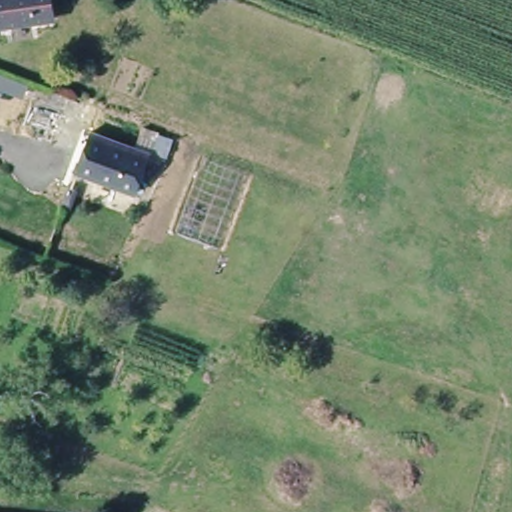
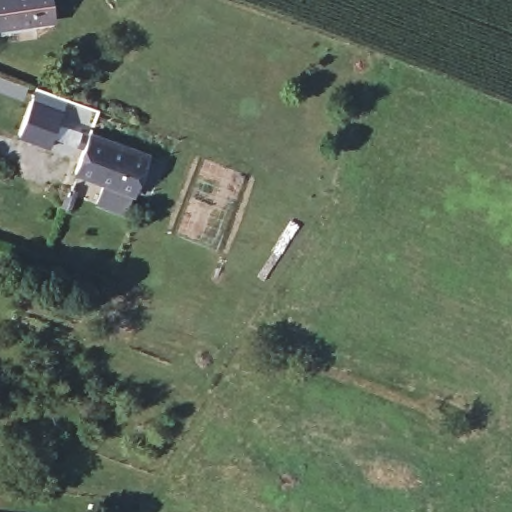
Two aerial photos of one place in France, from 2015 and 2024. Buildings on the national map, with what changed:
unchanged [(1,27),(0,18),(0,0),(54,0),(56,21),(1,27)]
new [(22,100),(0,91),(0,76),(26,86),(22,100)]
new [(36,88),(67,99),(54,139),(49,151),(18,138),(36,88)]
new [(67,99),(98,111),(91,127),(85,126),(76,147),(54,139),(67,99)]
unchanged [(139,198),(79,176),(93,136),(154,157),(139,198)]

